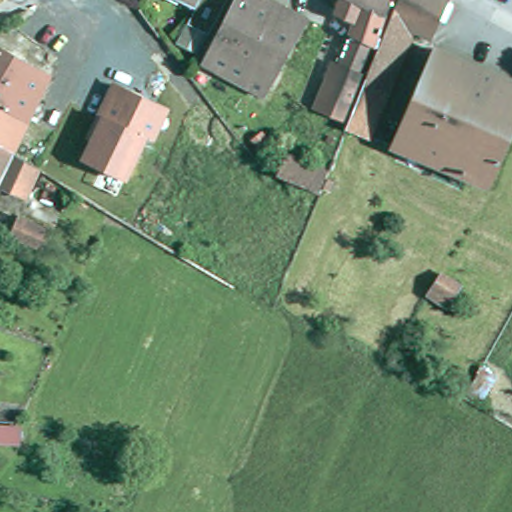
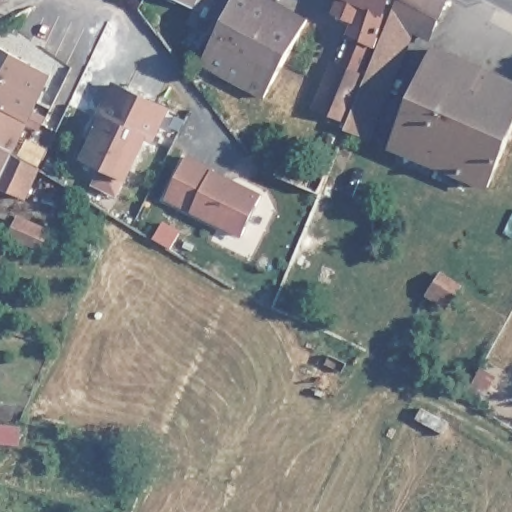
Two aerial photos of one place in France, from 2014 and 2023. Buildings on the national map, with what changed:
unchanged [(178,4),(171,0),(180,0),(178,4)]
unchanged [(188,26),(198,9),(181,0),(228,0),(208,36),(188,26)]
unchanged [(248,93),(251,88),(201,62),(234,0),(270,0),(308,20),(266,97),(259,93),(258,97),(248,93)]
unchanged [(335,15),(338,8),(341,0),(391,0),(388,7),(363,76),(338,66),(344,50),(355,25),(335,15)]
unchanged [(431,37),(414,30),(379,108),(358,99),(398,0),(445,0),(448,1),(431,37)]
unchanged [(0,99),(0,44),(49,71),(13,148),(0,141),(0,107),(3,101),(0,99)]
unchanged [(512,84),(512,133),(488,187),(394,147),(435,50),(512,84)]
unchanged [(171,107),(156,143),(148,139),(128,182),(81,160),(100,118),(95,115),(111,81),(171,107)]
unchanged [(0,141),(13,148),(38,163),(24,193),(0,182),(0,141)]
unchanged [(276,175),(284,155),(327,173),(319,193),(276,175)]
new [(188,156),(214,169),(213,171),(230,180),(228,184),(236,188),(238,184),(261,195),(243,234),(168,198),(188,156)]
unchanged [(19,221),(49,234),(43,249),(13,236),(11,239),(3,236),(9,223),(16,226),(19,221)]
unchanged [(20,446),(0,444),(0,425),(21,426),(20,446)]

